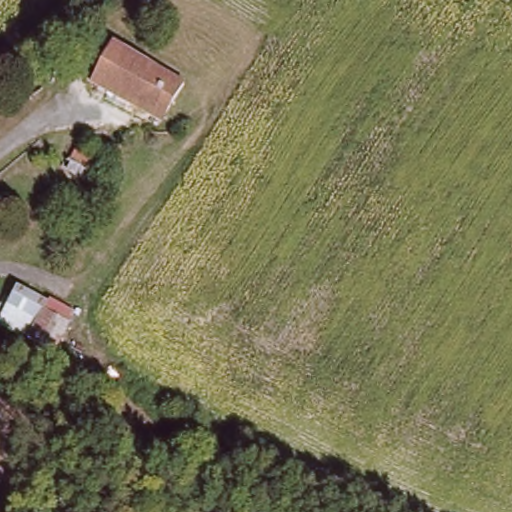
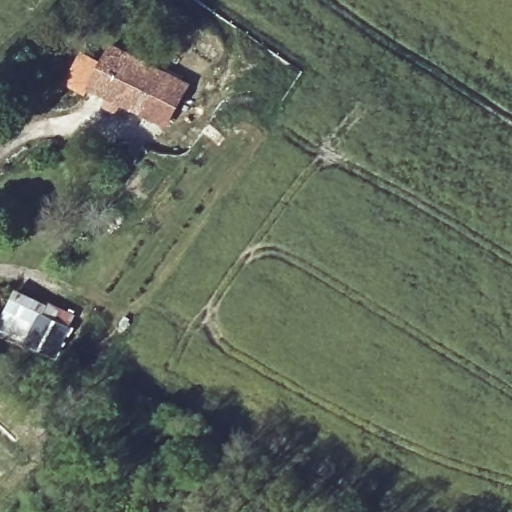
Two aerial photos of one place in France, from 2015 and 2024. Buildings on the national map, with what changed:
unchanged [(157,119),(92,82),(109,48),(179,86),(157,119)]
unchanged [(67,169),(74,154),(64,150),(76,130),(122,156),(102,186),(67,169)]
unchanged [(49,298),(76,313),(52,356),(0,328),(0,313),(15,285),(47,302),(49,298)]

